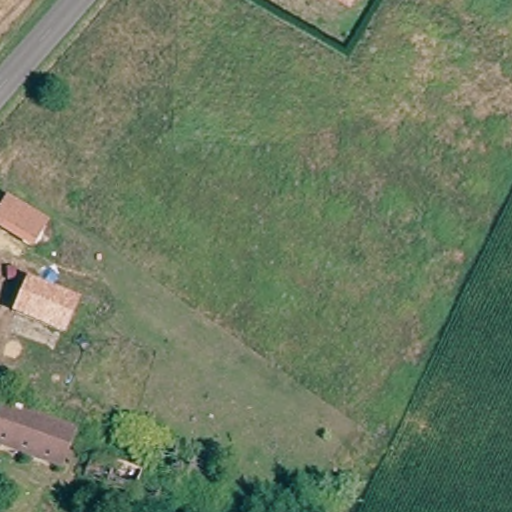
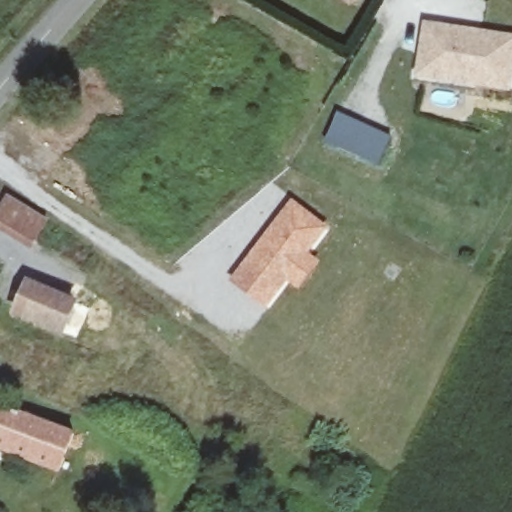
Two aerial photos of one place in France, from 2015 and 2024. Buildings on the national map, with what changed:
new [(512,84),(511,91),(414,77),(422,22),(512,35),(512,84)]
new [(392,138),(378,166),(325,141),(338,113),(392,138)]
new [(291,198),(329,227),(309,252),(321,261),(298,291),(288,283),(266,310),(227,281),(291,198)]
unchanged [(48,222),(38,237),(0,214),(10,199),(48,222)]
unchanged [(64,328),(54,338),(14,310),(33,286),(73,319),(64,328)]
unchanged [(73,435),(60,469),(0,445),(0,407),(73,435)]
demolished [(135,500),(112,489),(92,481),(102,456),(122,465),(146,475),(135,500)]

